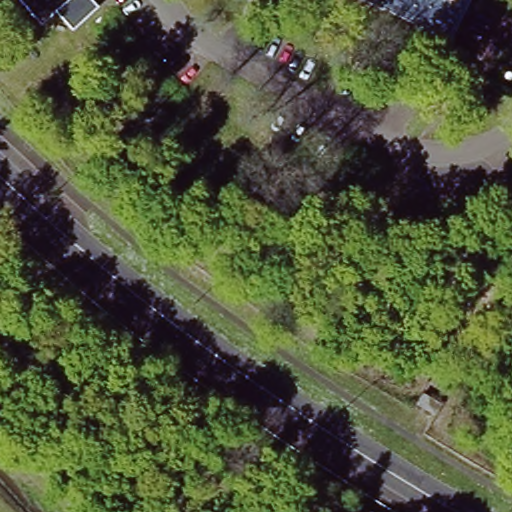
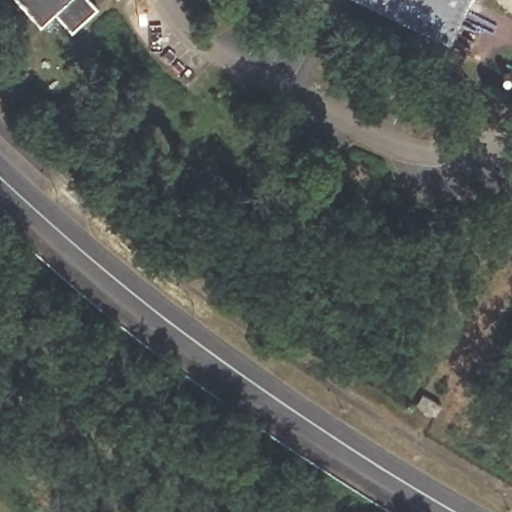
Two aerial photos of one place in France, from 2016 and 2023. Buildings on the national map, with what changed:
unchanged [(95,9),(69,32),(52,13),(40,24),(19,0),(87,0),(95,9)]
unchanged [(445,46),(356,0),(468,0),(445,46)]

